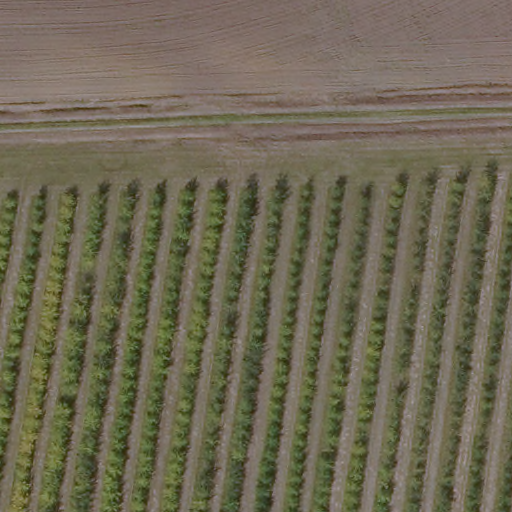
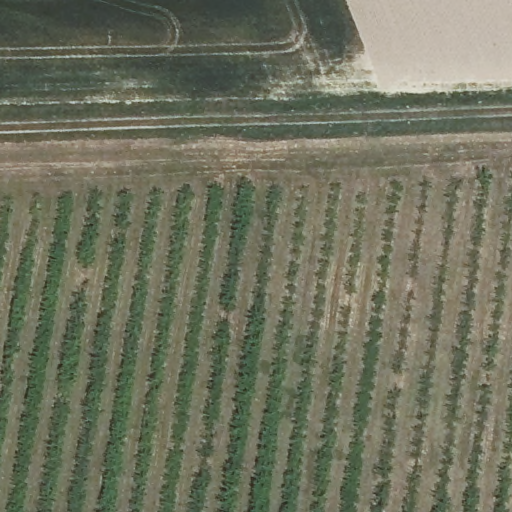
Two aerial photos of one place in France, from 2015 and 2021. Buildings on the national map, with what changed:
[]

